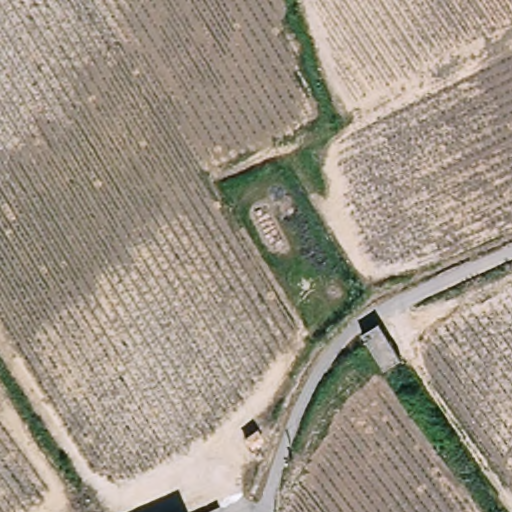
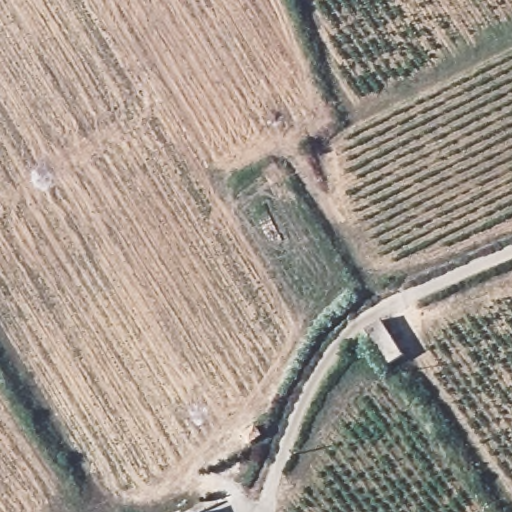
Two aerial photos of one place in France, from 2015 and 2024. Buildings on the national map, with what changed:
unchanged [(387,319),(388,320),(410,356),(390,369),(368,332),(387,319)]
unchanged [(250,424),(255,432),(240,442),(235,432),(250,424)]
unchanged [(201,512),(195,512),(201,511),(201,512)]

